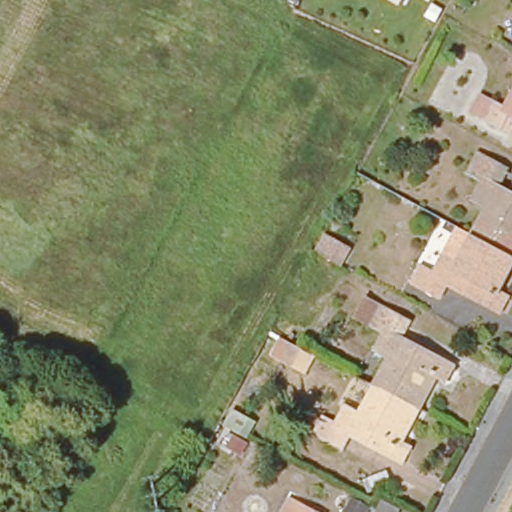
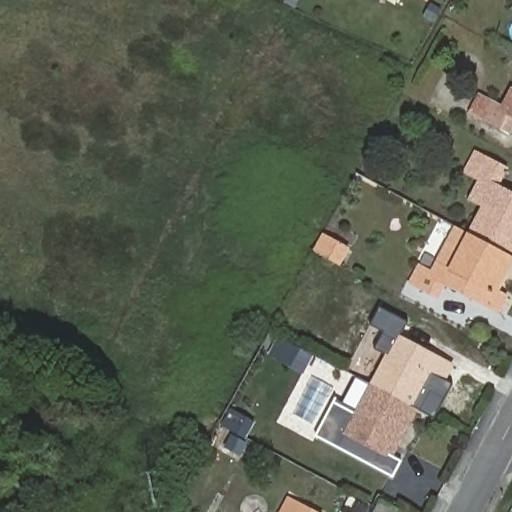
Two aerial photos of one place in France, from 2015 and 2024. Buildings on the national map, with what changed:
unchanged [(510,134),(470,112),(479,95),(503,108),(512,92),(512,130),(510,134)]
unchanged [(491,210),(478,202),(487,184),(475,177),(483,161),(510,175),(502,189),(512,195),(512,258),(477,239),(476,238),(491,210)]
unchanged [(351,251),(343,269),(315,255),(325,236),(351,251)]
unchanged [(506,268),(511,271),(498,295),(509,300),(501,314),(451,286),(443,302),(416,287),(425,270),(436,276),(446,258),(460,266),(476,238),(477,239),(512,258),(506,268)]
unchanged [(444,379),(433,374),(421,397),(415,394),(410,404),(395,396),(380,388),(373,385),(388,356),(375,348),(385,331),(355,314),(363,298),(406,322),(399,336),(451,364),(444,379)]
unchanged [(289,346),(310,357),(302,372),(280,360),(289,346)]
unchanged [(405,414),(410,417),(397,441),(407,446),(400,460),(350,433),(341,449),(315,434),(324,418),(335,423),(345,406),(359,413),(373,385),(380,388),(395,396),(410,404),(405,414)]
unchanged [(374,512),(380,500),(400,509),(398,512),(374,512)]
unchanged [(302,512),(294,512),(296,509),(302,512)]

